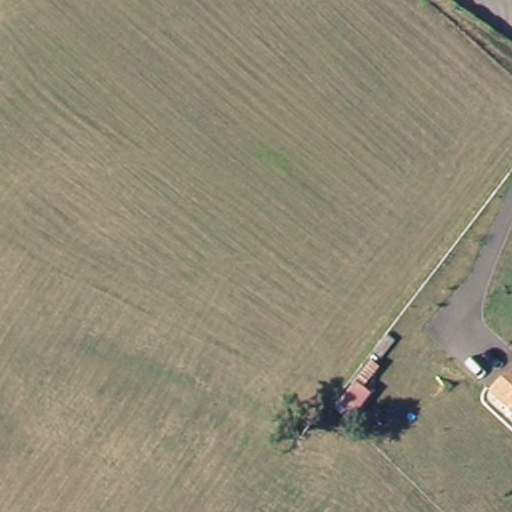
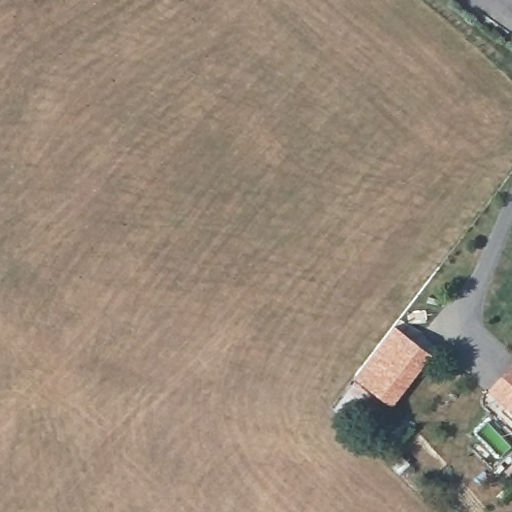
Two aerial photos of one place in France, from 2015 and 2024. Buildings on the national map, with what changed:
new [(432,354),(393,407),(375,395),(356,422),(333,407),(394,325),(432,354)]
unchanged [(512,413),(488,391),(512,368),(512,413)]

